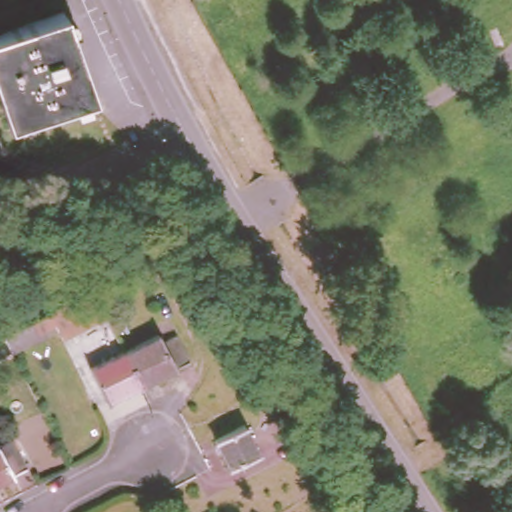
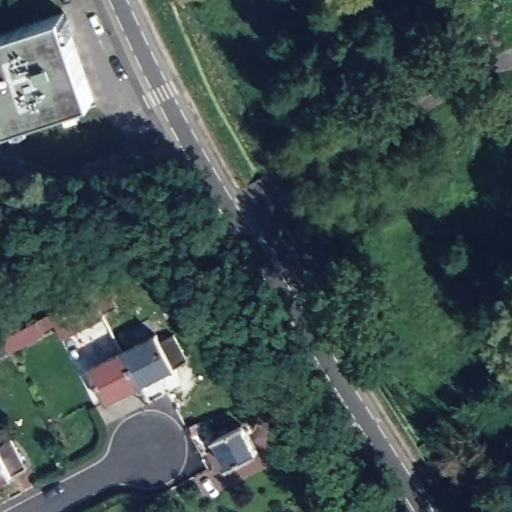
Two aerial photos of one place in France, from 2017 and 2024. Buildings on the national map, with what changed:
unchanged [(0,121),(0,33),(67,10),(100,104),(6,137),(0,121)]
unchanged [(12,230),(6,237),(0,232),(0,220),(12,230)]
unchanged [(144,280),(138,270),(153,262),(166,256),(184,282),(167,291),(158,272),(144,280)]
unchanged [(94,292),(108,286),(119,306),(104,313),(106,316),(63,338),(51,315),(94,292)]
unchanged [(5,338),(41,320),(47,332),(12,351),(0,357),(0,341),(5,338)]
unchanged [(158,337),(162,345),(175,338),(189,364),(141,388),(124,355),(158,337)]
unchanged [(107,406),(91,372),(124,355),(141,388),(107,406)]
unchanged [(230,465),(215,438),(244,423),(259,451),(230,465)]
unchanged [(12,443),(27,472),(0,486),(0,450),(12,443)]

